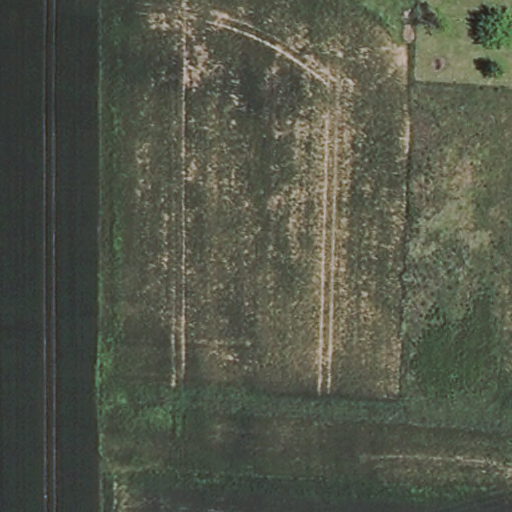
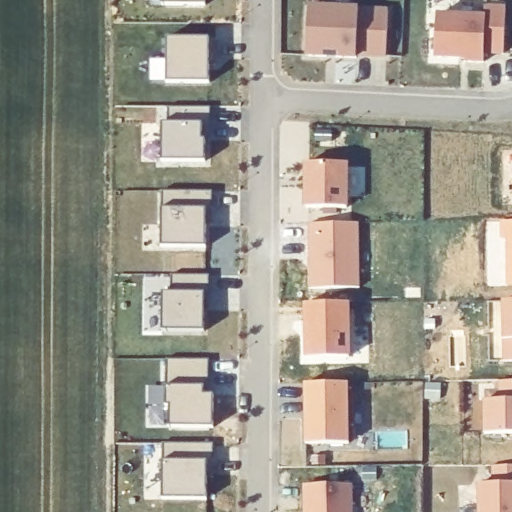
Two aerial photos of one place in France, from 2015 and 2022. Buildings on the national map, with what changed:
new [(162,0),(205,0),(205,4),(162,4),(162,0)]
new [(309,6),(357,9),(390,10),(387,57),(356,58),(306,59),(309,6)]
new [(435,15),(482,17),(483,7),(507,9),(505,55),(485,54),(484,63),(434,60),(435,15)]
new [(167,40),(211,39),(210,84),(167,83),(167,40)]
new [(162,124),(170,125),(169,108),(212,108),(212,125),(202,126),(202,141),(207,142),(206,162),(162,162),(162,124)]
new [(305,163),(350,164),(350,208),(304,208),(305,163)]
new [(160,210),(160,192),(212,191),(213,225),(205,225),(205,247),(161,247),(160,210)]
new [(512,285),(507,286),(506,238),(500,238),(500,221),(512,220),(512,285)]
new [(310,224),(360,223),(359,290),(310,290),(310,224)]
new [(211,276),(211,295),(207,295),(207,332),(164,332),(164,293),(172,293),(172,276),(211,276)]
new [(502,300),(512,300),(512,362),(505,362),(504,340),(502,300)]
new [(351,357),(309,358),(309,336),(308,321),(308,304),(350,303),(351,357)]
new [(210,360),(210,388),(206,388),(206,395),(215,395),(215,428),(171,428),(172,407),(167,407),(168,360),(210,360)]
new [(486,400),(502,400),(501,381),(512,380),(512,433),(487,434),(486,400)]
new [(305,385),(349,385),(350,445),(305,444),(305,385)]
new [(215,478),(209,478),(209,501),(164,500),(164,444),(215,444),(215,462),(215,478)]
new [(495,483),(495,465),(512,465),(512,512),(479,512),(479,484),(495,483)]
new [(354,512),(308,512),(307,486),(354,485),(354,512)]

